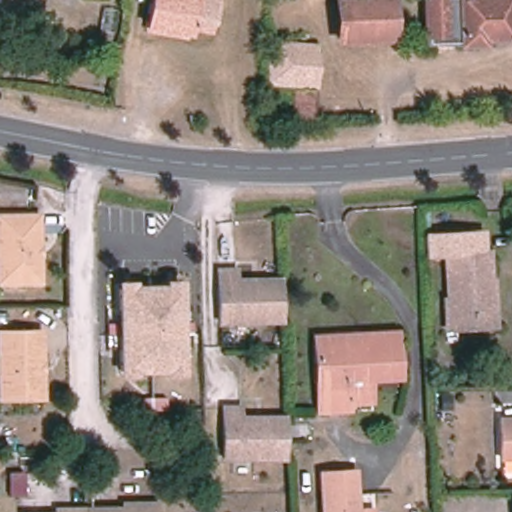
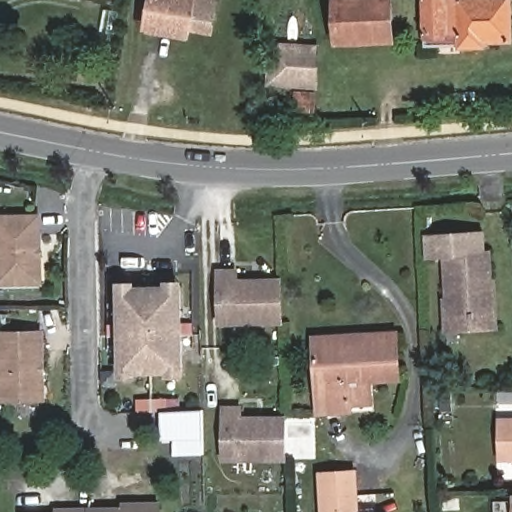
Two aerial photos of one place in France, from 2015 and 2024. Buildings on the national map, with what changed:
unchanged [(147,29),(152,0),(217,0),(212,26),(192,22),(189,36),(147,29)]
unchanged [(392,0),(393,39),(337,41),(336,0),(392,0)]
unchanged [(424,0),(512,0),(512,10),(512,42),(486,43),(486,46),(426,47),(424,0)]
unchanged [(277,41),(277,44),(318,46),(317,89),(268,85),(270,41),(277,41)]
unchanged [(294,119),(296,93),(317,94),(315,120),(294,119)]
unchanged [(40,217),(42,284),(0,284),(0,217),(40,217)]
unchanged [(443,253),(443,261),(425,261),(425,235),(485,233),(486,250),(443,253)]
unchanged [(446,256),(489,253),(493,328),(450,331),(446,256)]
unchanged [(237,272),(237,282),(281,281),(282,322),(221,324),(220,272),(237,272)]
unchanged [(186,380),(167,380),(166,375),(141,375),(139,381),(120,381),(119,283),(137,282),(136,287),(165,286),(165,283),(186,282),(186,380)]
unchanged [(351,400),(351,407),(318,408),(315,341),(315,333),(361,331),(397,329),(400,375),(371,376),(372,399),(351,400)]
unchanged [(44,400),(1,401),(0,378),(0,333),(43,333),(44,400)]
new [(172,455),(172,440),(162,440),(162,412),(136,412),(135,399),(182,398),(182,411),(202,411),(204,454),(172,455)]
unchanged [(512,406),(512,475),(502,475),(502,406),(512,406)]
unchanged [(241,408),(242,419),(285,418),(286,459),(225,460),(224,409),(241,408)]
unchanged [(321,475),(355,473),(357,512),(323,512),(321,475)]
unchanged [(107,510),(125,510),(125,505),(159,505),(159,512),(107,512),(107,510)]
unchanged [(57,511),(92,510),(92,512),(57,512),(57,511)]

